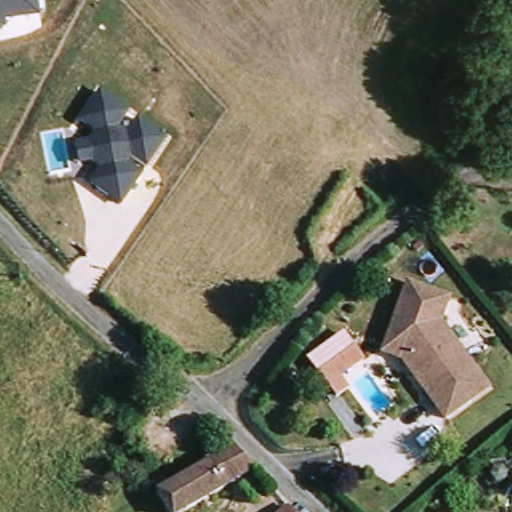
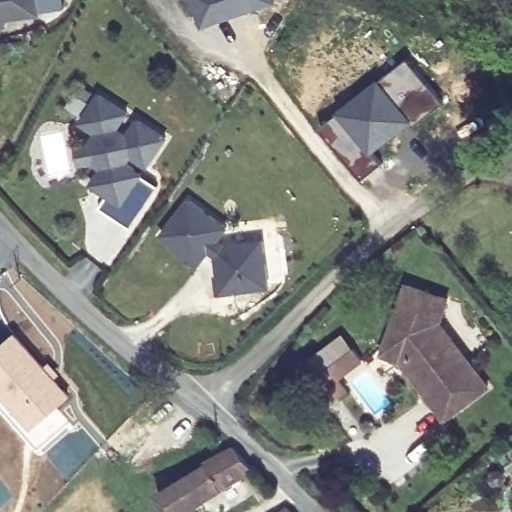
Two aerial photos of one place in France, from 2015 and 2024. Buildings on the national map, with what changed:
unchanged [(40,17),(7,22),(8,30),(0,31),(0,0),(38,0),(40,17)]
new [(40,15),(38,0),(61,0),(62,10),(40,15)]
new [(205,22),(197,0),(275,0),(205,22)]
new [(410,63),(444,108),(412,127),(407,121),(398,128),(395,124),(387,129),(390,134),(369,149),(380,163),(358,178),(317,124),(410,63)]
unchanged [(130,111),(119,129),(127,135),(139,116),(168,136),(150,165),(133,155),(127,164),(143,174),(124,205),(90,182),(99,169),(92,164),(80,166),(79,148),(92,146),(97,134),(79,123),(97,93),(130,111)]
new [(189,197),(229,229),(219,241),(224,245),(264,240),(269,290),(217,296),(215,257),(210,255),(200,266),(160,235),(189,197)]
unchanged [(407,289),(449,303),(437,335),(444,354),(460,375),(472,367),(490,392),(446,423),(402,363),(383,359),(387,350),(407,289)]
new [(71,396),(57,406),(70,423),(40,450),(0,405),(0,346),(16,331),(71,396)]
new [(339,399),(334,393),(327,388),(319,375),(355,348),(365,360),(340,379),(344,384),(349,390),(339,399)]
unchanged [(252,472),(188,512),(168,512),(155,494),(233,447),(252,472)]
unchanged [(280,512),(284,508),(288,512),(280,512)]

